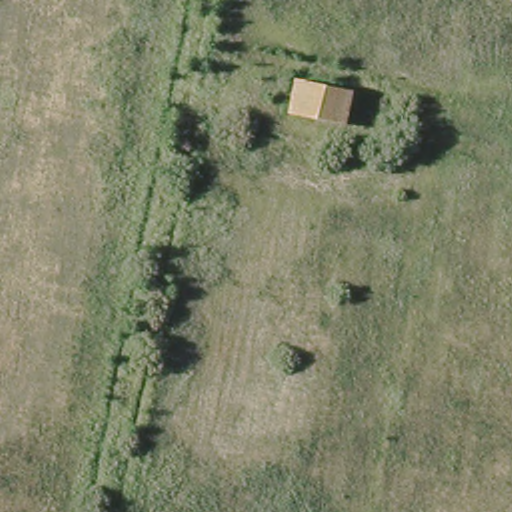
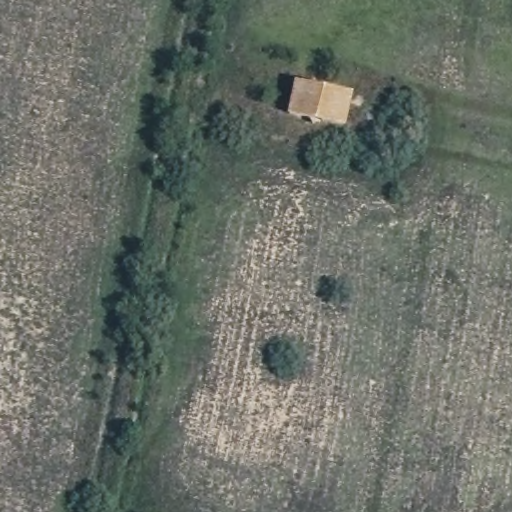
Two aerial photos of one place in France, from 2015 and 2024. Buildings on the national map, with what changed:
unchanged [(297,76),(357,84),(351,117),(291,105),(297,76)]

